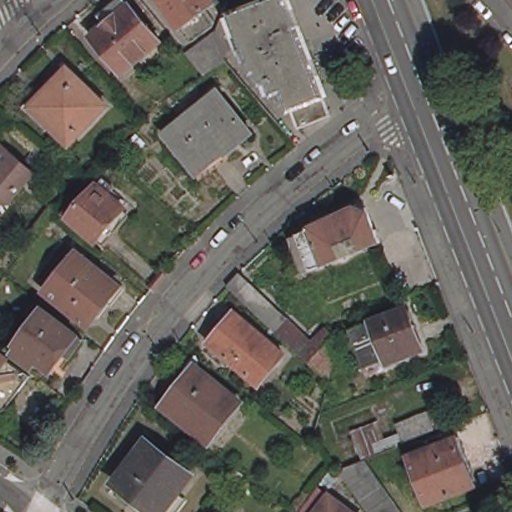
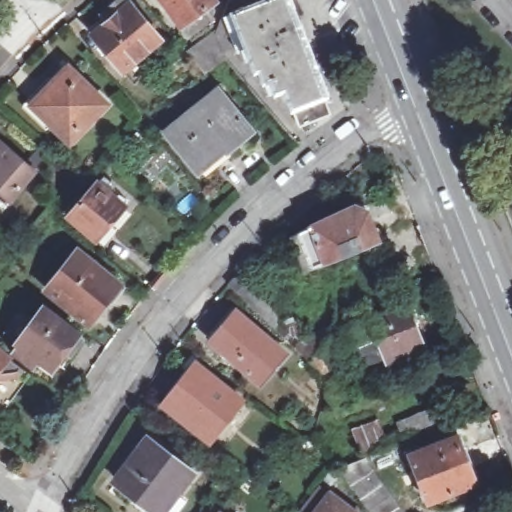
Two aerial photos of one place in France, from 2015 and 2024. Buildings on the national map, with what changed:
unchanged [(100,14),(116,0),(128,0),(163,40),(124,73),(93,35),(107,22),(100,14)]
unchanged [(158,0),(210,0),(176,25),(158,0)]
unchanged [(311,39),(313,45),(314,47),(316,54),(317,56),(319,61),(335,101),(341,119),(310,131),(304,114),(300,105),(294,108),(289,97),(286,98),(281,84),(276,86),(271,73),(266,75),(263,65),(258,67),(253,56),(248,58),(240,35),(237,41),(242,54),(235,56),(238,65),(216,79),(201,54),(226,36),(228,30),(239,4),(249,0),(295,0),(304,25),(311,39)]
unchanged [(68,66),(109,105),(71,144),(31,105),(68,66)]
unchanged [(204,179),(196,169),(165,131),(218,89),(253,130),(226,150),(231,156),(204,179)]
unchanged [(0,142),(36,174),(14,201),(9,207),(0,200),(0,142)]
unchanged [(79,193),(85,198),(100,180),(130,206),(99,241),(64,210),(79,193)]
unchanged [(356,205),(369,211),(371,215),(376,232),(381,241),(380,242),(307,271),(295,242),(303,238),(301,232),(311,227),(311,226),(356,205)]
unchanged [(78,250),(119,283),(88,321),(47,289),(78,250)]
unchanged [(230,283),(238,275),(240,272),(251,283),(252,282),(313,337),(324,328),(341,345),(331,382),(228,285),(230,283)]
unchanged [(411,302),(425,340),(410,345),(413,353),(395,360),(392,352),(371,360),(356,323),(411,302)]
unchanged [(44,303),(84,333),(70,352),(65,348),(53,365),(40,355),(35,362),(15,346),(23,337),(19,335),(44,303)]
unchanged [(285,352),(259,382),(212,342),(238,312),(285,352)]
unchanged [(4,405),(0,401),(0,345),(32,370),(4,405)]
unchanged [(198,365),(198,363),(198,361),(198,360),(198,358),(196,357),(196,356),(197,354),(198,355),(199,357),(201,358),(201,360),(201,362),(201,364),(201,366),(199,367),(241,400),(210,440),(170,408),(176,401),(184,391),(188,385),(184,382),(198,365)]
unchanged [(337,399),(331,381),(340,378),(348,375),(354,392),(346,395),(337,399)]
unchanged [(168,512),(149,512),(124,494),(131,486),(113,471),(114,469),(143,430),(186,462),(180,469),(173,479),(186,489),(168,512)]
unchanged [(474,481),(474,483),(428,501),(428,500),(421,481),(410,454),(456,436),(464,456),(467,463),(474,481)]
unchanged [(402,512),(370,512),(339,468),(364,458),(402,512)]
unchanged [(235,472),(237,470),(238,468),(246,474),(246,475),(238,485),(229,480),(235,472)]
unchanged [(358,512),(318,512),(332,494),(358,512)]

